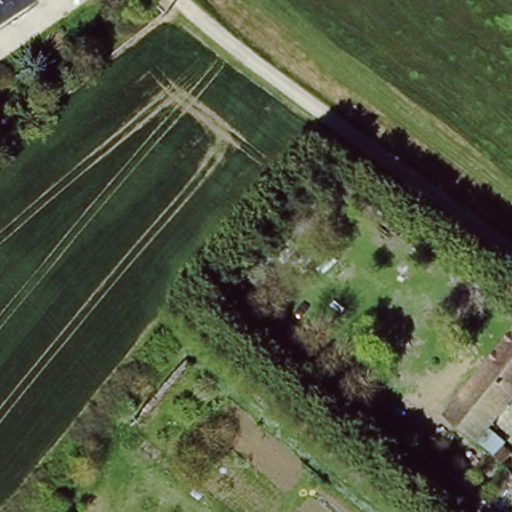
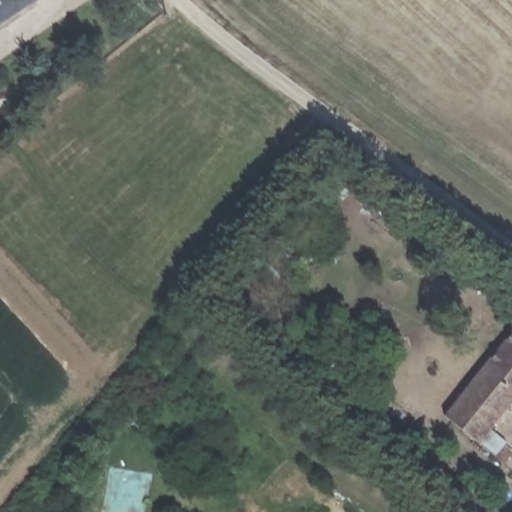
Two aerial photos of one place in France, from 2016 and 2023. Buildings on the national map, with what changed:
unchanged [(0,19),(0,0),(28,0),(0,19)]
unchanged [(486,426),(504,440),(497,449),(506,455),(498,466),(442,417),(512,331),(512,393),(486,426)]
unchanged [(451,512),(433,498),(450,476),(495,512),(451,512)]

